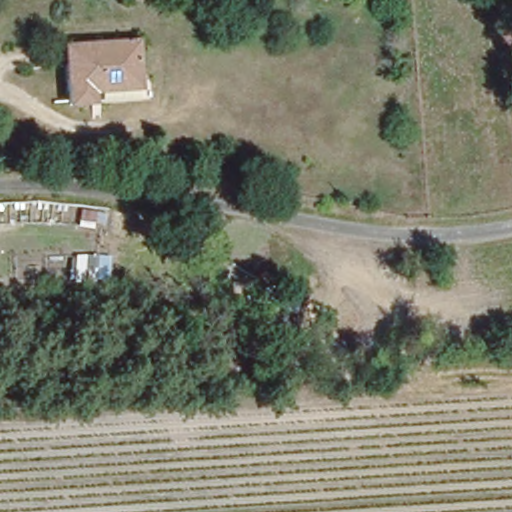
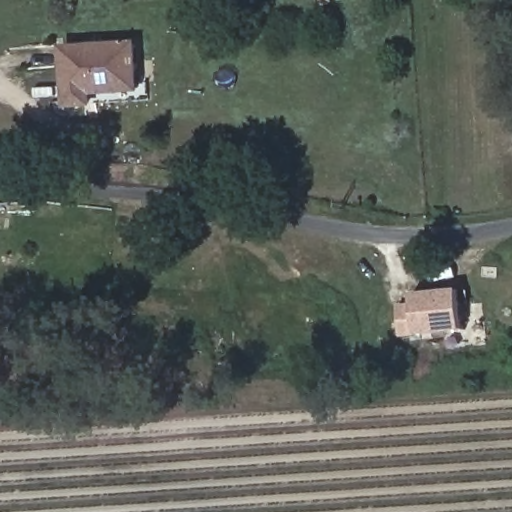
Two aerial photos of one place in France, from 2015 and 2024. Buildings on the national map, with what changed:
unchanged [(140,85),(94,94),(96,103),(74,107),(63,54),(130,40),(140,85)]
new [(410,301),(409,291),(455,287),(458,326),(398,332),(395,303),(410,301)]

